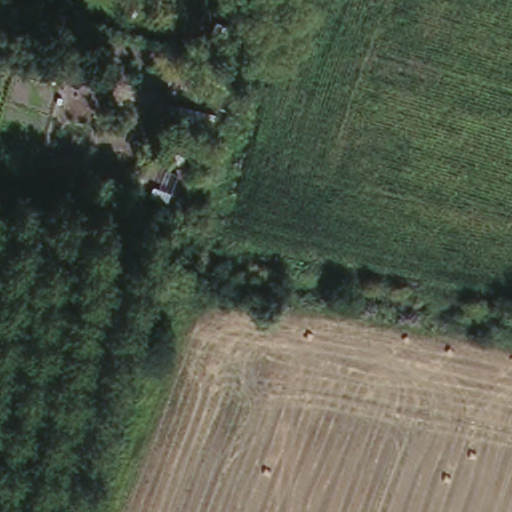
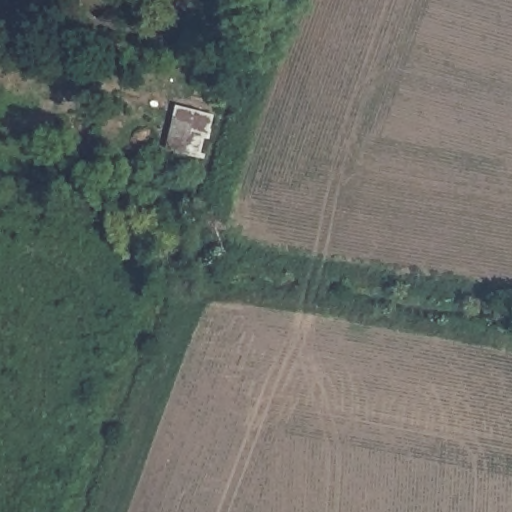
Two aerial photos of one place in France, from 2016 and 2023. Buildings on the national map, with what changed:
unchanged [(176,100),(199,104),(184,155),(165,149),(176,100)]

